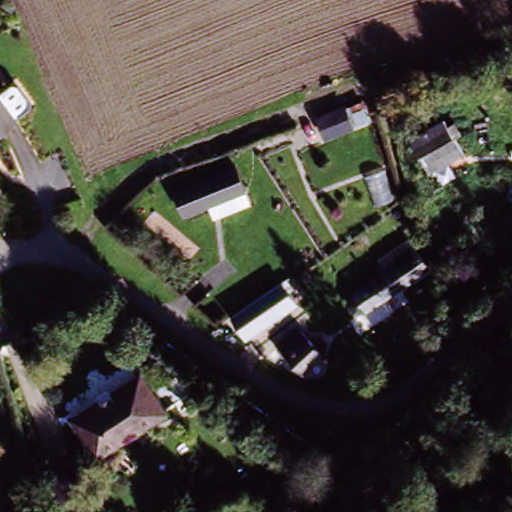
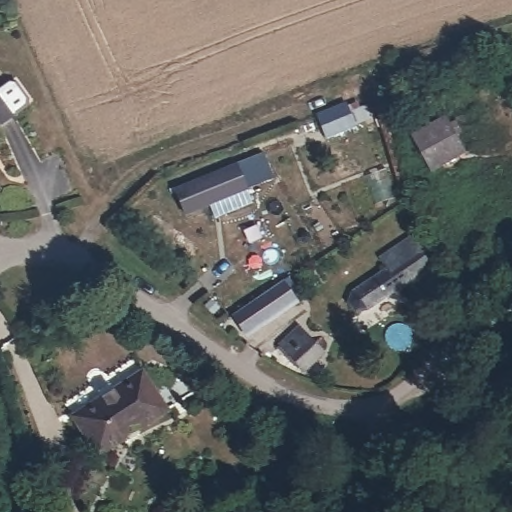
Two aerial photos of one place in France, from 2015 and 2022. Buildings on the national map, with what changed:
unchanged [(9,82),(27,106),(13,117),(0,127),(0,89),(9,82)]
unchanged [(372,103),(376,115),(352,124),(353,127),(325,138),(317,116),(345,106),(347,113),(372,103)]
unchanged [(411,142),(445,118),(465,147),(431,171),(411,142)]
unchanged [(178,204),(169,181),(231,158),(240,181),(245,196),(208,210),(203,195),(178,204)]
unchanged [(384,265),(414,243),(432,269),(368,315),(357,311),(353,300),(390,272),(384,265)]
unchanged [(297,328),(320,352),(300,369),(278,345),(297,328)]
unchanged [(142,377),(165,415),(100,454),(77,416),(142,377)]

